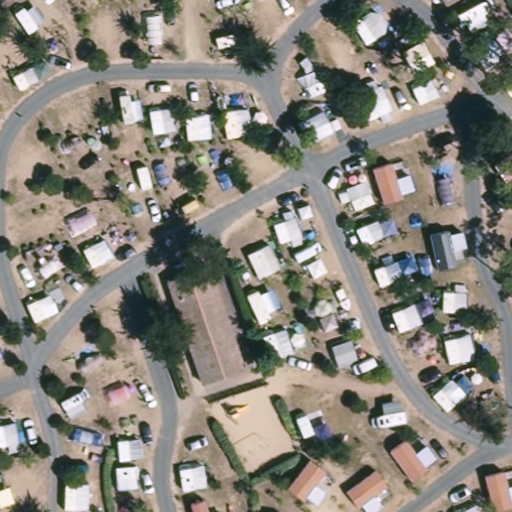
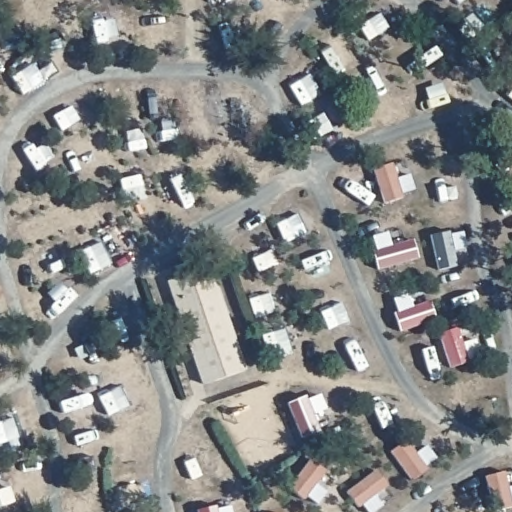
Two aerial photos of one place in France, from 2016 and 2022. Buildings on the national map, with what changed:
unchanged [(247,371),(205,385),(170,282),(213,266),(230,314),(208,322),(218,350),(238,343),(247,371)]

